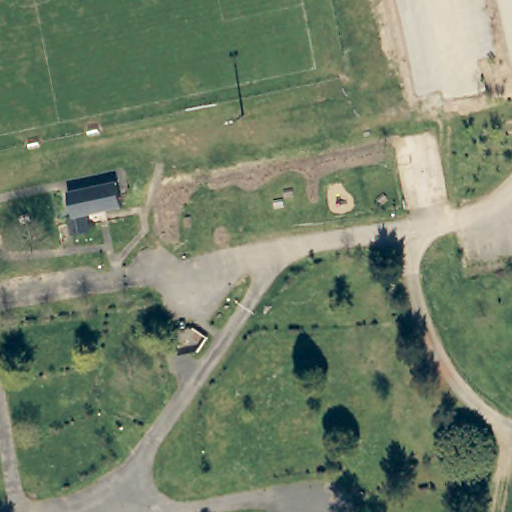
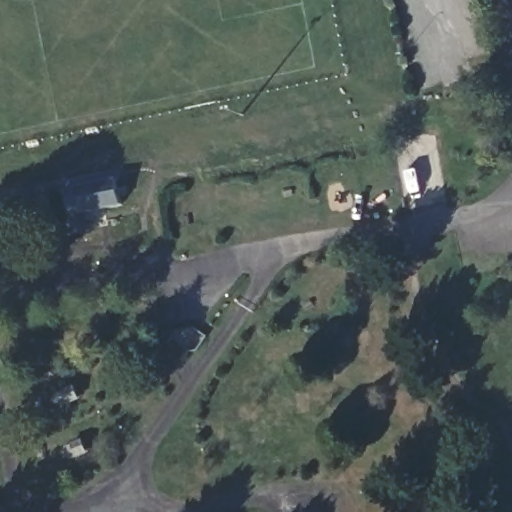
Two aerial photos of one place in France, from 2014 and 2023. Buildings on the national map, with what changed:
unchanged [(70,212),(79,211),(74,189),(121,179),(126,204),(91,211),(95,229),(75,232),(70,212)]

